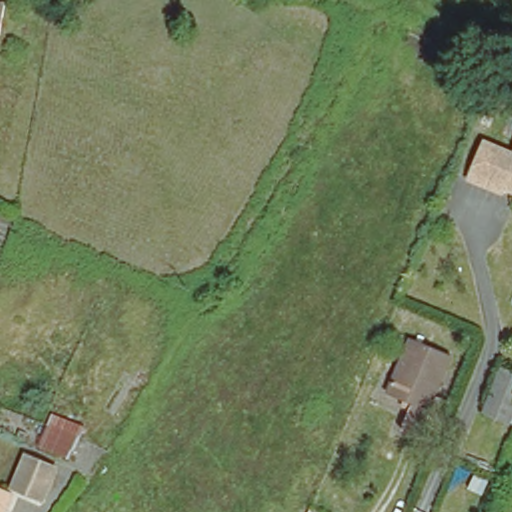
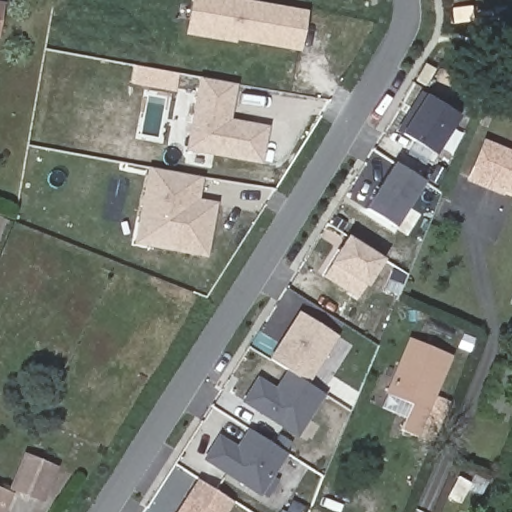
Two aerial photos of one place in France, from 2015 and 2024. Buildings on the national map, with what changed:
new [(301,51),(186,31),(191,0),(248,0),(309,10),(301,51)]
unchanged [(2,4),(0,18),(0,4),(2,4)]
new [(204,80),(238,86),(231,124),(270,130),(263,165),(191,151),(204,80)]
new [(433,93),(437,96),(469,115),(447,152),(411,130),(420,115),(433,93)]
unchanged [(496,195),(466,182),(480,146),(510,159),(512,155),(512,195),(499,190),(496,195)]
new [(400,165),(427,181),(398,227),(371,210),(400,165)]
new [(155,170),(204,178),(200,203),(218,206),(210,255),(157,246),(142,243),(146,219),(155,170)]
new [(355,237),(388,258),(364,297),(330,276),(355,237)]
new [(302,312),(338,336),(308,383),(290,371),(272,360),(302,312)]
unchanged [(411,441),(395,435),(406,410),(382,400),(405,344),(445,361),(428,402),(443,408),(432,433),(426,447),(411,441)]
new [(259,380),(277,391),(290,371),(308,383),(325,393),(298,436),(245,401),(259,380)]
new [(220,438),(238,450),(251,430),(287,453),(262,494),(207,460),(220,438)]
unchanged [(54,463),(41,496),(11,483),(24,451),(54,463)]
unchanged [(475,476),(487,482),(482,493),(470,487),(475,476)]
new [(180,511),(184,505),(200,480),(233,502),(227,512),(180,512),(180,511)]
unchanged [(10,490),(5,503),(2,512),(0,512),(0,485),(10,490)]
demolished [(512,505),(512,512),(509,512),(512,505)]

